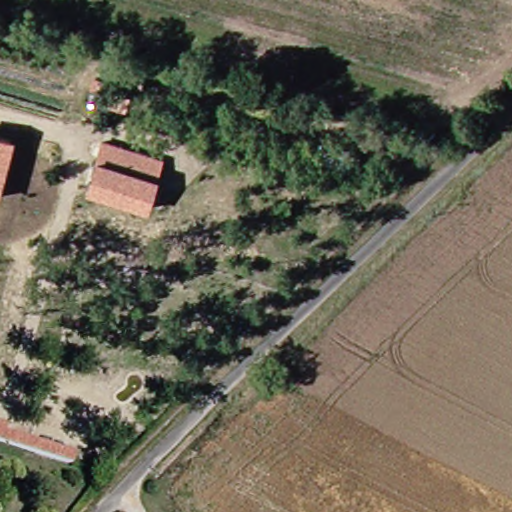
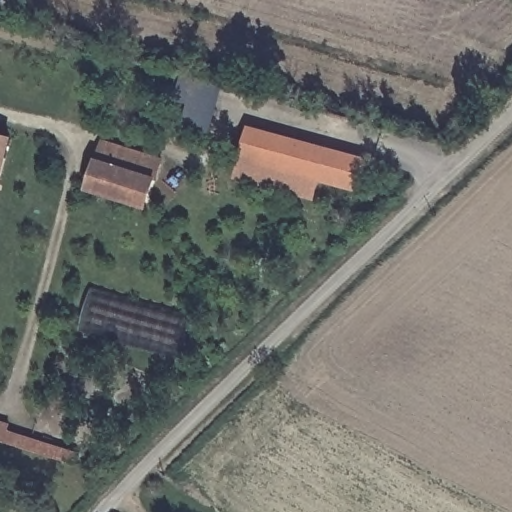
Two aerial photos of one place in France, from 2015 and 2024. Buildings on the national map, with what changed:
new [(316,175),(239,155),(247,125),(324,146),(316,175)]
new [(14,137),(0,187),(0,133),(14,137)]
unchanged [(102,139),(162,158),(158,177),(149,209),(86,191),(97,157),(102,139)]
new [(365,157),(357,187),(316,175),(324,146),(365,157)]
new [(316,175),(322,177),(317,200),(232,179),(239,155),(316,175)]
new [(180,356),(81,329),(93,286),(190,314),(180,356)]
new [(0,440),(0,420),(10,423),(8,428),(82,451),(77,464),(0,440)]

